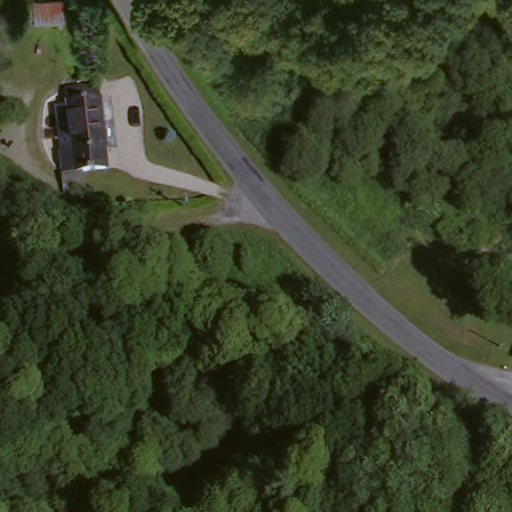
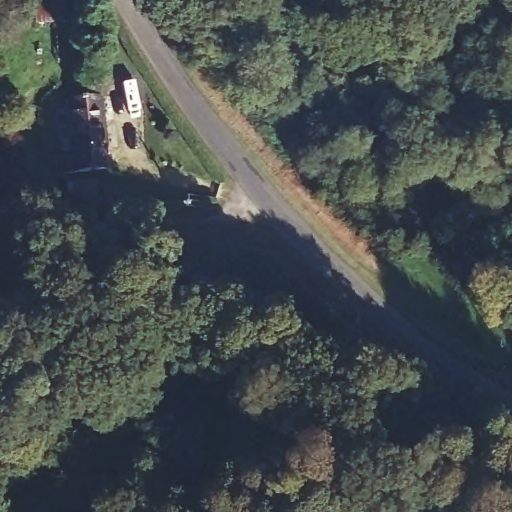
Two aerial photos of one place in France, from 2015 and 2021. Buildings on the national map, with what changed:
unchanged [(77,176),(86,204),(64,208),(52,156),(67,152),(60,93),(97,88),(111,172),(77,176)]

